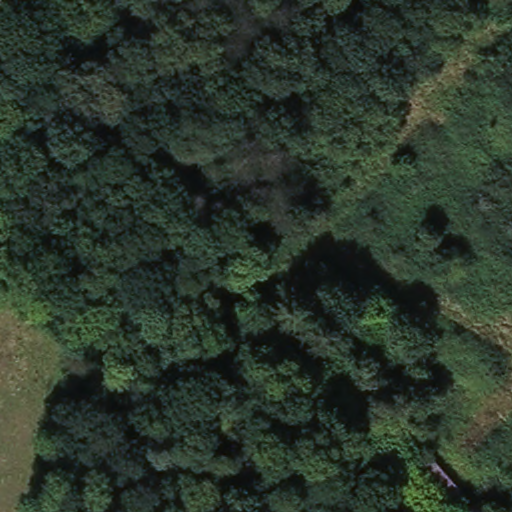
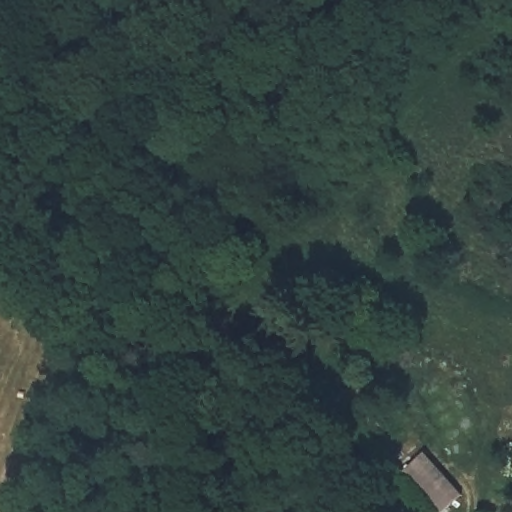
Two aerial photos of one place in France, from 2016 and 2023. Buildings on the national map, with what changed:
unchanged [(408,466),(429,449),(472,496),(446,510),(408,466)]

